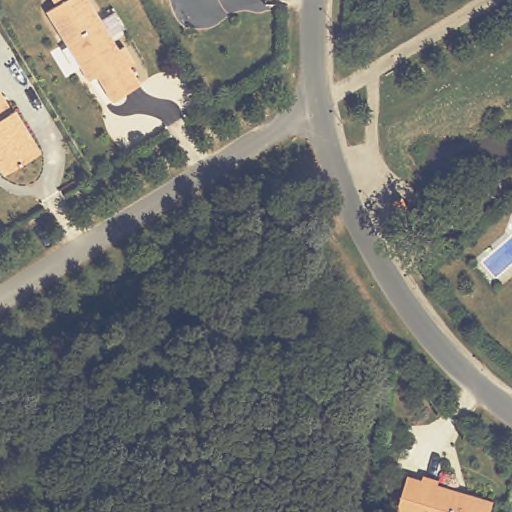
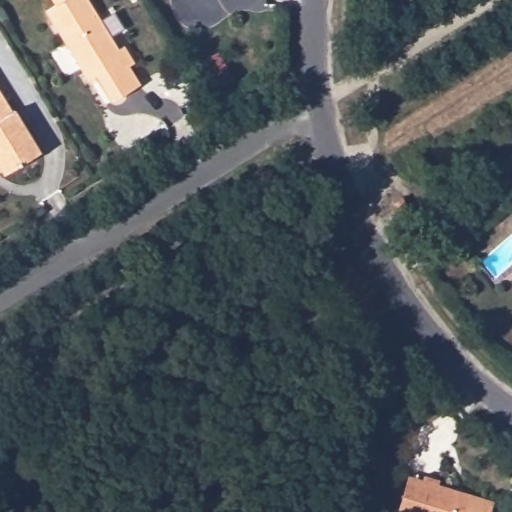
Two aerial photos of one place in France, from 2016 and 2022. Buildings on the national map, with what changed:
unchanged [(87,79),(45,10),(55,4),(52,0),(88,0),(117,47),(122,44),(133,60),(127,64),(139,82),(124,91),(111,99),(95,74),(87,79)]
unchanged [(10,110),(13,108),(39,150),(2,172),(0,168),(0,93),(10,110)]
unchanged [(405,189),(413,205),(403,210),(396,194),(405,189)]
unchanged [(422,480),(424,475),(440,480),(438,484),(457,490),(468,493),(494,500),(491,512),(398,512),(408,475),(422,480)]

